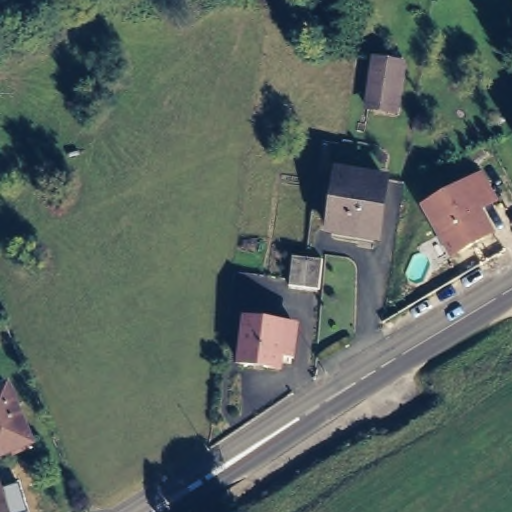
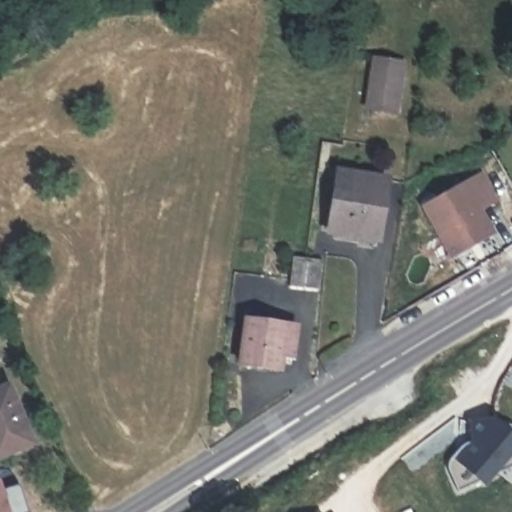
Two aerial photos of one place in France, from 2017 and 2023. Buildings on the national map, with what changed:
unchanged [(401,111),(373,106),(378,77),(365,74),(368,54),(382,57),(408,61),(401,111)]
unchanged [(340,170),(385,177),(376,236),(329,230),(340,170)]
unchanged [(442,243),(415,193),(485,188),(472,196),(485,219),(442,243)]
unchanged [(322,266),(318,290),(288,285),(292,262),(322,266)]
unchanged [(240,357),(246,313),(293,321),(288,353),(280,352),(277,364),(240,357)]
unchanged [(38,445),(1,459),(0,456),(0,398),(15,392),(38,445)]
new [(455,441),(460,446),(470,435),(468,413),(490,413),(495,417),(500,417),(510,420),(512,421),(512,457),(512,458),(507,462),(500,463),(485,469),(479,475),(477,472),(452,482),(443,458),(444,452),(455,441)]
unchanged [(0,512),(0,504),(3,504),(7,512),(0,512)]

